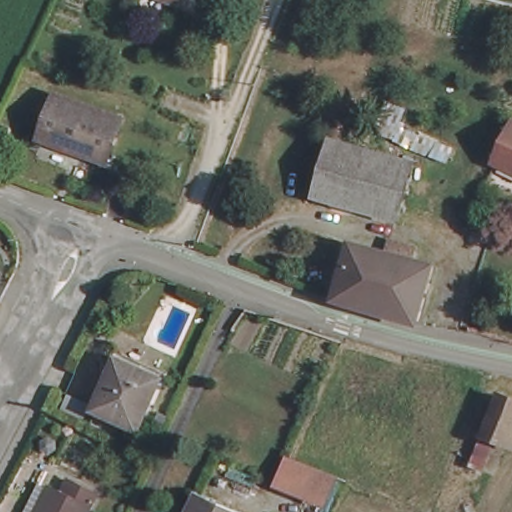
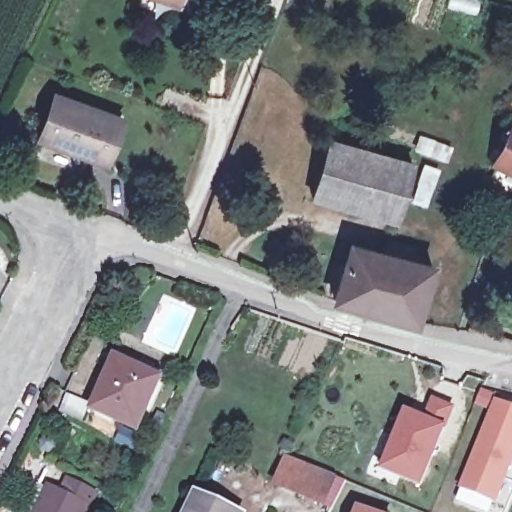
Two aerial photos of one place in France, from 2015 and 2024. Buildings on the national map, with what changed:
unchanged [(169,4),(159,0),(171,0),(169,4)]
unchanged [(125,116),(112,158),(41,135),(55,92),(125,116)]
unchanged [(309,192),(328,128),(415,156),(412,167),(402,200),(396,219),(359,207),(309,192)]
unchanged [(512,136),(512,179),(498,176),(507,135),(512,136)]
unchanged [(409,252),(412,245),(429,250),(427,257),(436,260),(418,318),(338,293),(354,237),(409,252)]
unchanged [(105,376),(113,380),(124,358),(160,376),(136,426),(93,403),(105,376)]
demolished [(507,391),(512,393),(512,440),(499,436),(489,432),(507,391)]
new [(427,423),(433,402),(453,410),(422,487),(384,470),(404,412),(427,423)]
new [(512,409),(512,455),(494,500),(462,487),(496,402),(512,409)]
unchanged [(285,458),(331,479),(319,507),(273,485),(285,458)]
unchanged [(95,507),(98,508),(96,512),(44,512),(44,511),(36,507),(48,484),(55,487),(71,495),(78,480),(103,492),(95,507)]
unchanged [(229,512),(193,512),(199,498),(229,512)]
new [(374,512),(355,512),(356,506),(374,512)]

